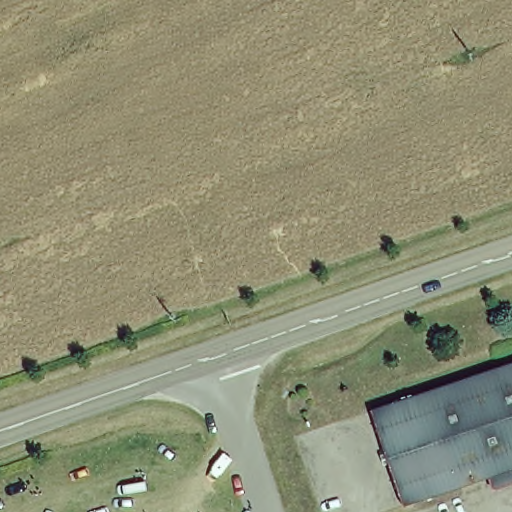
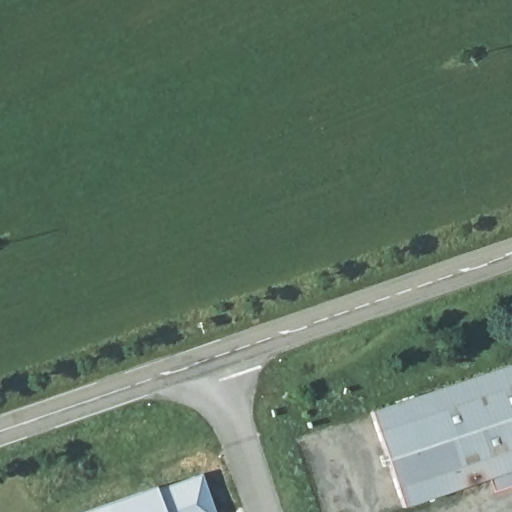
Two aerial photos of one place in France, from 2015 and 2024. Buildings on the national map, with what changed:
unchanged [(369,411),(512,364),(512,468),(400,506),(369,411)]
new [(85,512),(205,470),(217,512),(85,512)]

